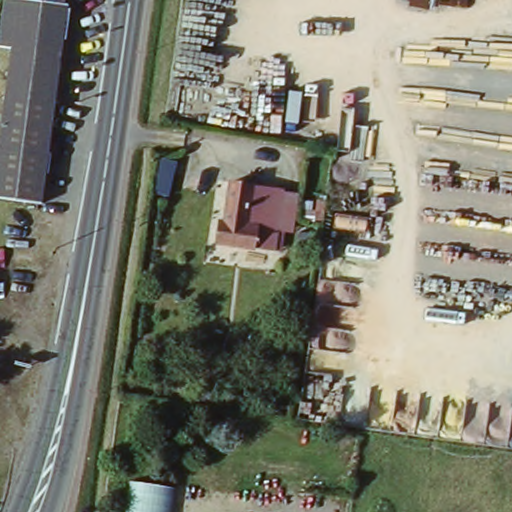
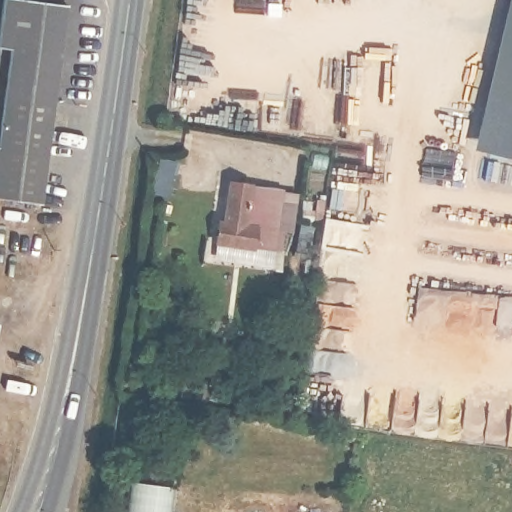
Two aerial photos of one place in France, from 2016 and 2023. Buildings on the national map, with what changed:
unchanged [(37,207),(0,202),(0,16),(2,0),(15,0),(65,6),(37,207)]
new [(512,0),(512,158),(475,150),(511,0),(512,0)]
unchanged [(244,187),(278,193),(269,255),(249,252),(206,245),(209,227),(217,227),(223,183),(244,187)]
unchanged [(126,483),(167,490),(164,512),(122,512),(126,483)]

